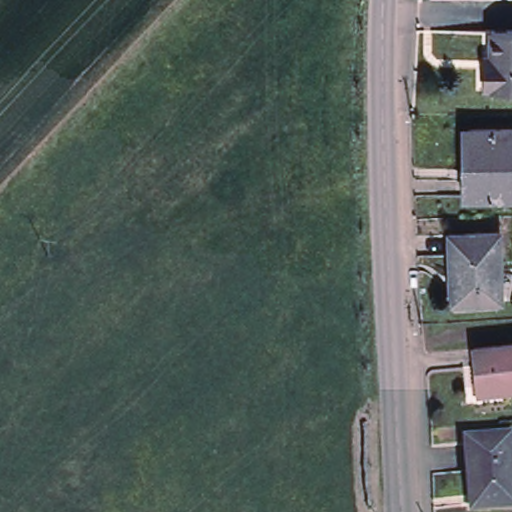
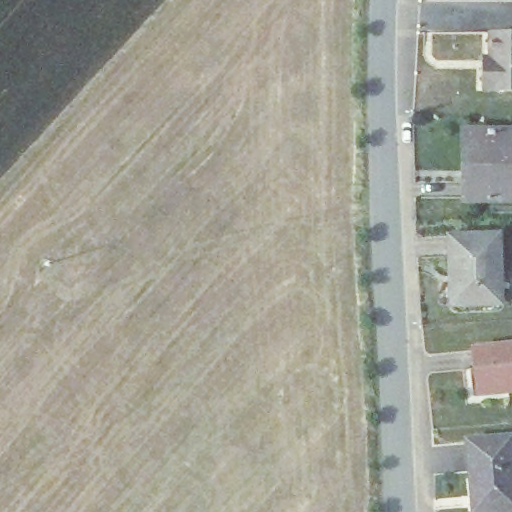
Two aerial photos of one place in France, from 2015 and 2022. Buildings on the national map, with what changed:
unchanged [(491,28),(512,28),(512,83),(484,83),(484,63),(484,52),(490,52),(491,28)]
unchanged [(459,199),(458,178),(468,178),(467,130),(512,130),(512,199),(459,199)]
unchanged [(496,233),(499,303),(457,305),(455,275),(452,275),(450,234),(496,233)]
unchanged [(480,387),(476,346),(512,343),(512,389),(511,389),(511,397),(482,400),(480,387)]
unchanged [(468,438),(508,433),(511,458),(512,458),(512,502),(475,503),(468,438)]

